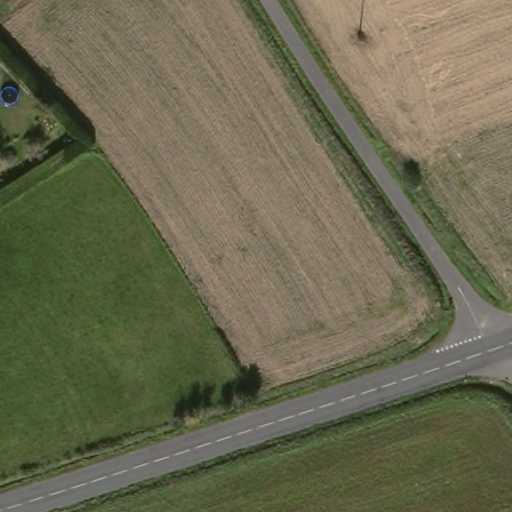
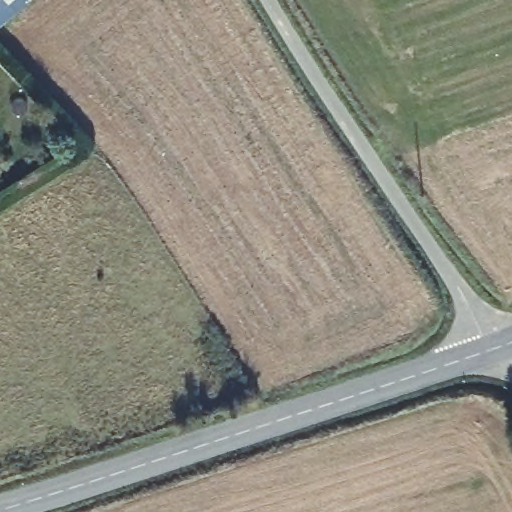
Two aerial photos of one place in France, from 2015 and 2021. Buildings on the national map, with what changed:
new [(0,27),(0,0),(25,0),(27,3),(0,27)]

